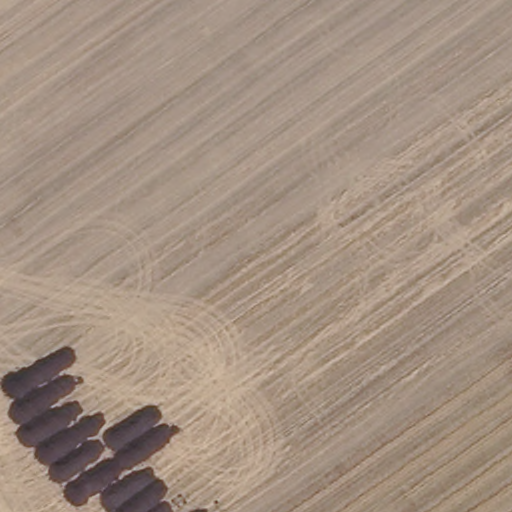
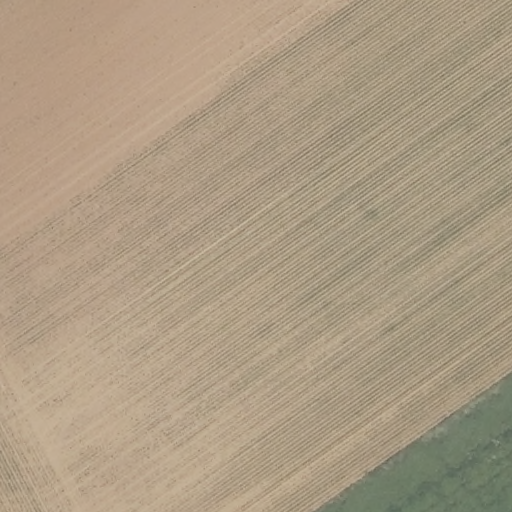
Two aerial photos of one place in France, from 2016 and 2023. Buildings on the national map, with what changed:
[]

